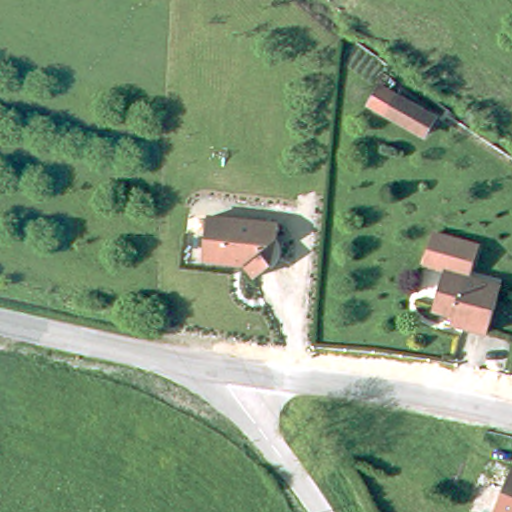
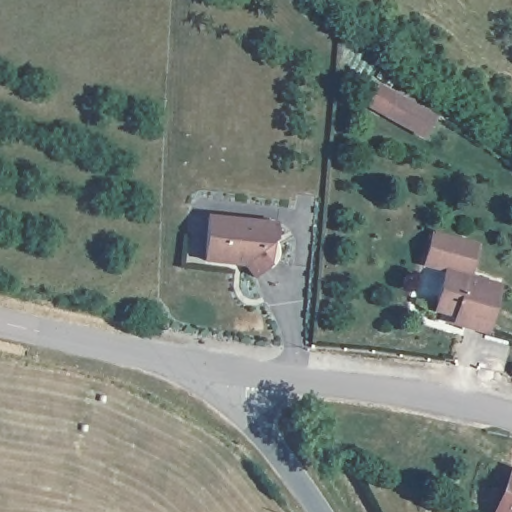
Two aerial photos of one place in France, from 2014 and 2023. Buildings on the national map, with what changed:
unchanged [(432,122),(423,139),(387,120),(397,102),(432,122)]
unchanged [(210,220),(279,228),(278,240),(272,245),(271,267),(253,282),(243,271),(205,266),(210,220)]
unchanged [(479,246),(470,277),(502,286),(489,333),(455,324),(457,316),(436,310),(447,271),(425,265),(427,258),(434,233),(479,246)]
unchanged [(501,512),(493,509),(512,462),(512,512),(501,512)]

